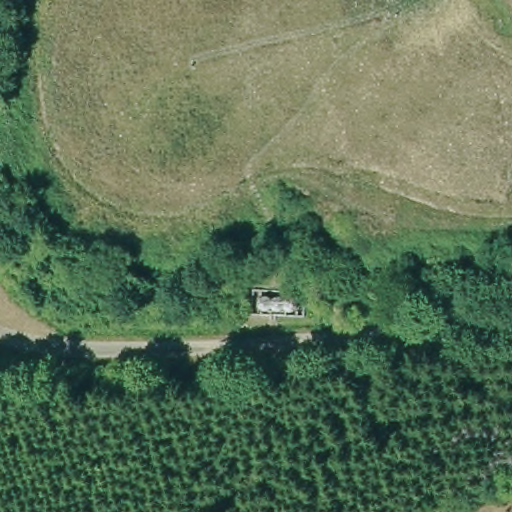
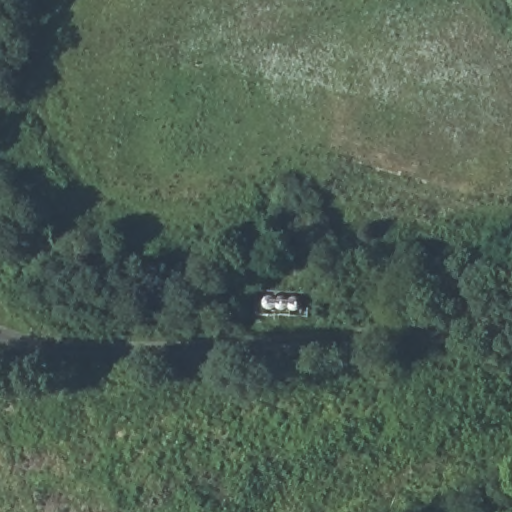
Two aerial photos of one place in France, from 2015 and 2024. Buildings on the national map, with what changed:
unchanged [(301,313),(261,315),(261,296),(302,297),(301,313)]

